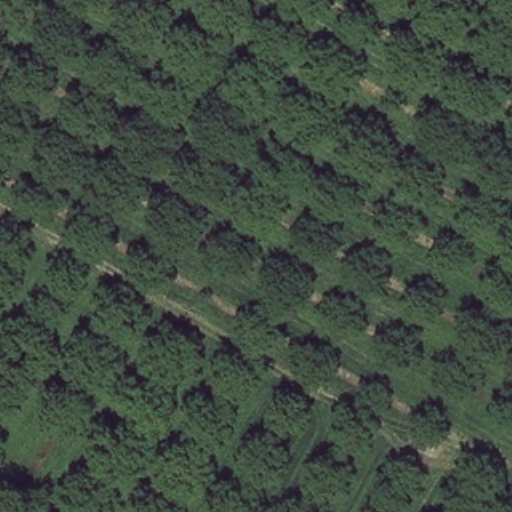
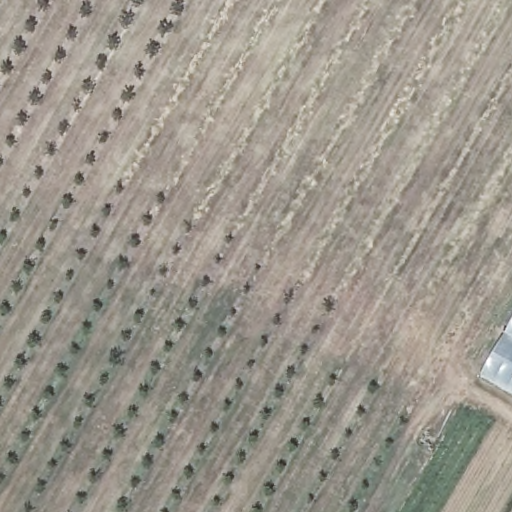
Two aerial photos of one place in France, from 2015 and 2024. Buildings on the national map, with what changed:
new [(482,377),(512,323),(512,394),(482,377)]

